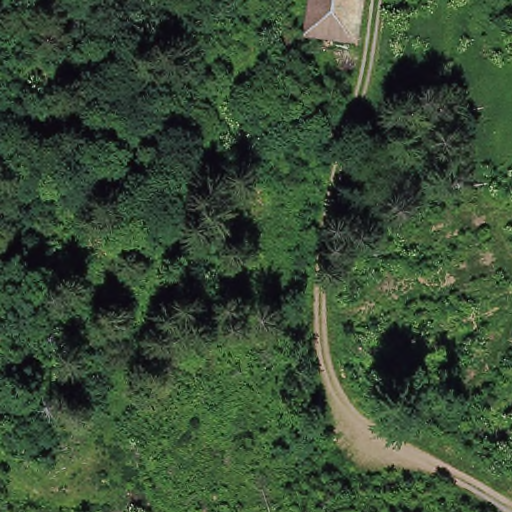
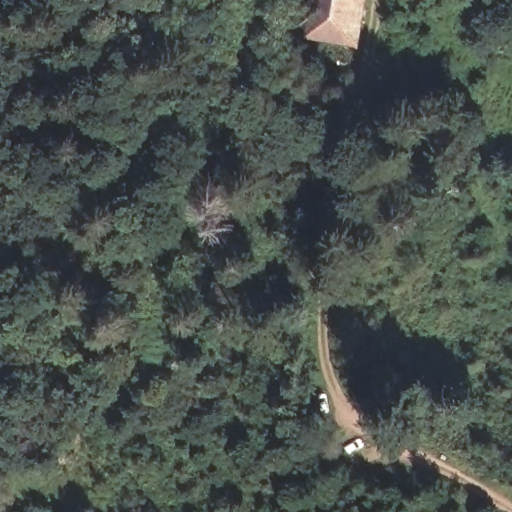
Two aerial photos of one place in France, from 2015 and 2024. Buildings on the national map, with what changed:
unchanged [(362,0),(357,38),(351,37),(307,30),(312,0),(362,0)]

